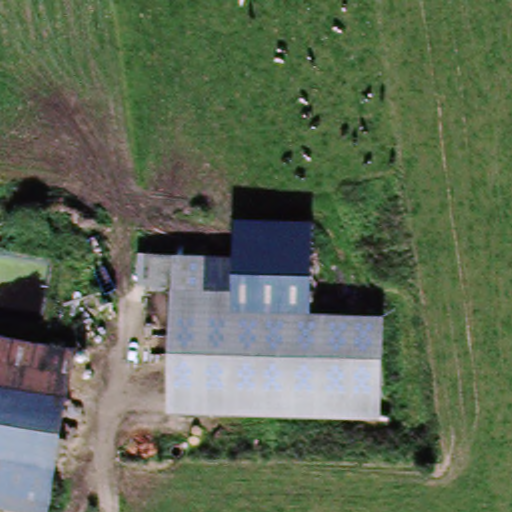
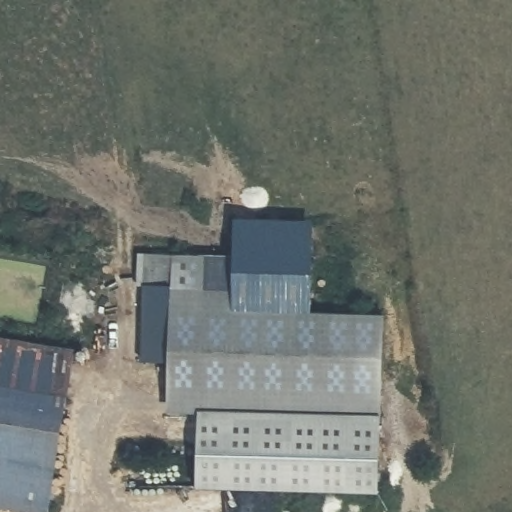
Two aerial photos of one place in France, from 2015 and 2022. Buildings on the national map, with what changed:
unchanged [(381,420),(168,413),(171,287),(136,288),(138,253),(234,256),(234,219),(313,223),(311,313),(384,315),(381,420)]
unchanged [(0,508),(0,340),(78,353),(58,445),(40,512),(14,512),(0,508)]
new [(196,490),(199,420),(380,426),(377,496),(196,490)]

